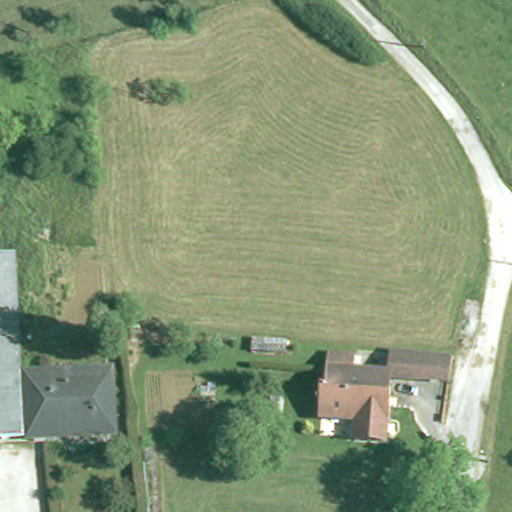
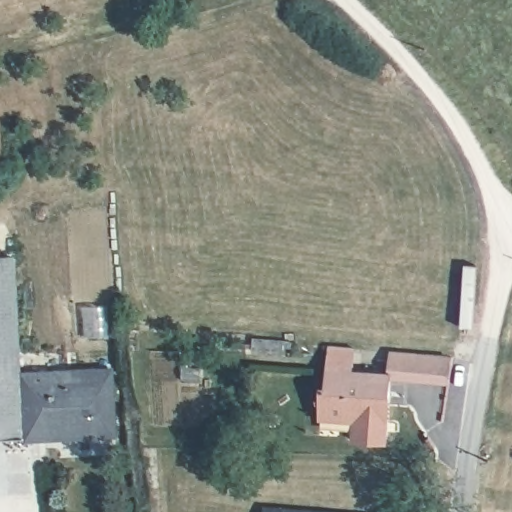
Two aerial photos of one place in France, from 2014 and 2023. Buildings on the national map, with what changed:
unchanged [(15,257),(21,374),(25,438),(0,439),(0,258),(15,257)]
unchanged [(356,416),(326,414),(320,413),(322,387),(328,388),(329,370),(330,353),(354,355),(352,372),(390,374),(392,351),(410,353),(425,354),(423,378),(390,376),(390,396),(384,396),(382,426),(387,430),(386,442),(355,440),(356,416)]
unchanged [(111,369),(115,434),(25,438),(21,374),(111,369)]

